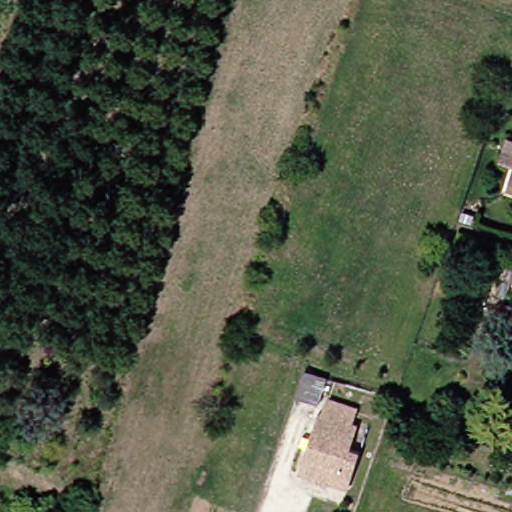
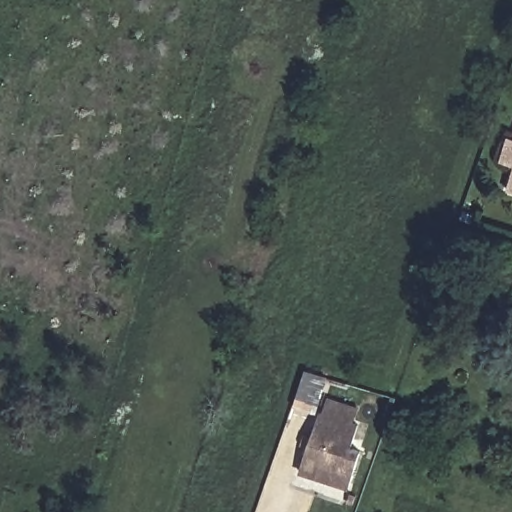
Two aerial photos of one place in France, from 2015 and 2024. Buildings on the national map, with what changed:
unchanged [(498,161),(506,139),(512,140),(512,166),(498,161)]
unchanged [(505,193),(512,170),(512,195),(505,193)]
unchanged [(490,273),(497,252),(512,256),(512,271),(510,280),(490,273)]
unchanged [(300,397),(310,370),(330,377),(321,404),(300,397)]
unchanged [(309,463),(314,447),(307,444),(311,435),(317,437),(327,410),(332,412),(335,405),(359,413),(357,420),(366,423),(357,445),(367,449),(357,479),(355,486),(307,471),(309,463)]

